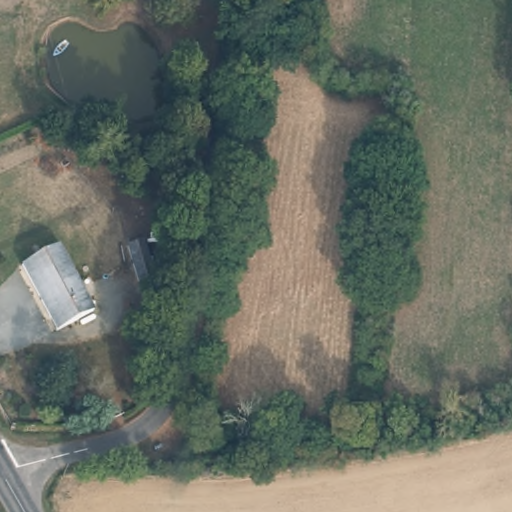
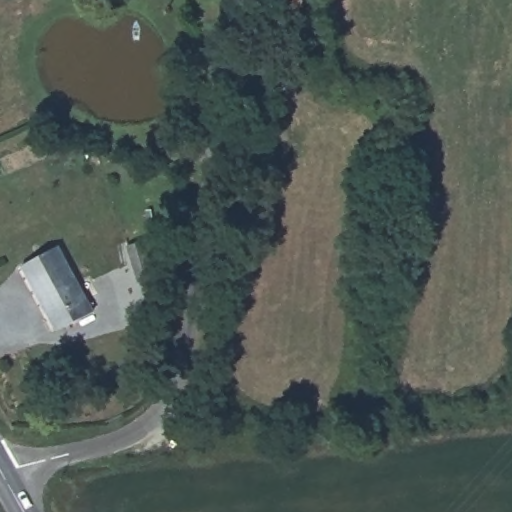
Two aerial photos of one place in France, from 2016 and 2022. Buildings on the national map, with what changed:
unchanged [(146,242),(154,283),(136,287),(128,246),(146,242)]
unchanged [(93,311),(57,329),(24,262),(60,245),(93,311)]

